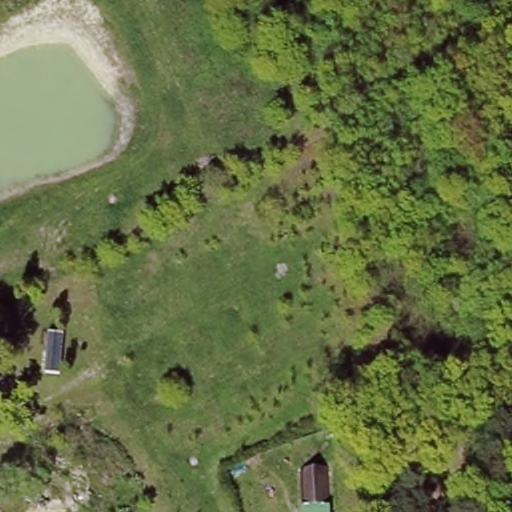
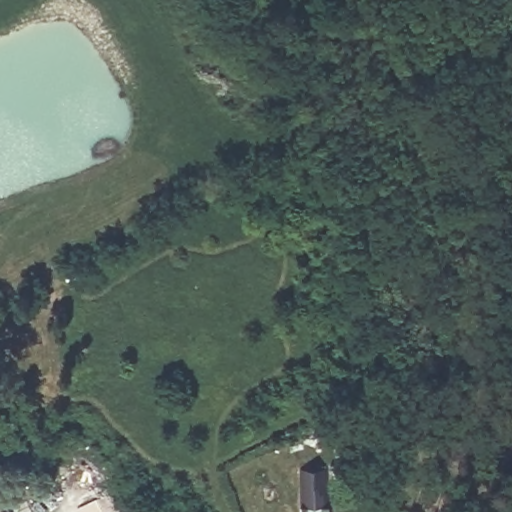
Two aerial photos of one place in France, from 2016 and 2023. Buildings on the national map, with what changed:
unchanged [(320,463),(323,510),(319,510),(299,511),(295,464),(301,463),(320,463)]

